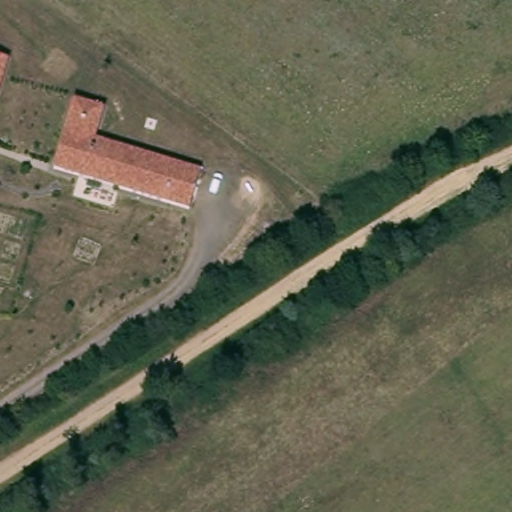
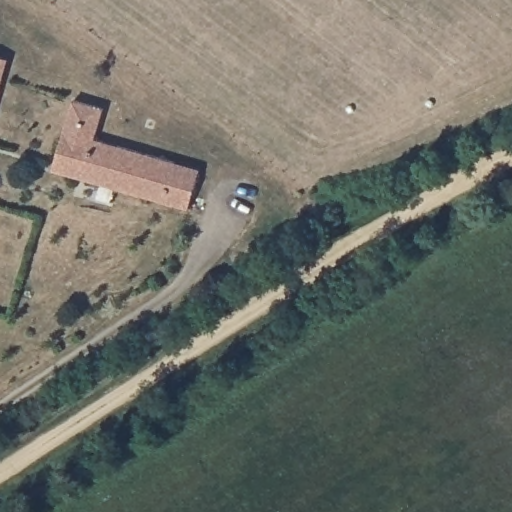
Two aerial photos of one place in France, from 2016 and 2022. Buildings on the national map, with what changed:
unchanged [(0,85),(0,57),(7,59),(0,85)]
unchanged [(73,99),(104,108),(96,139),(199,169),(187,207),(54,172),(73,99)]

